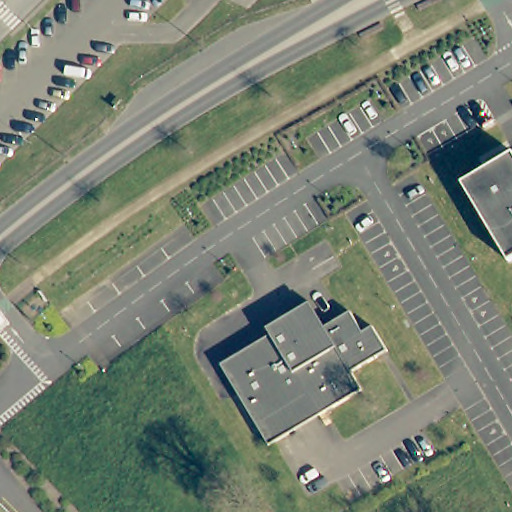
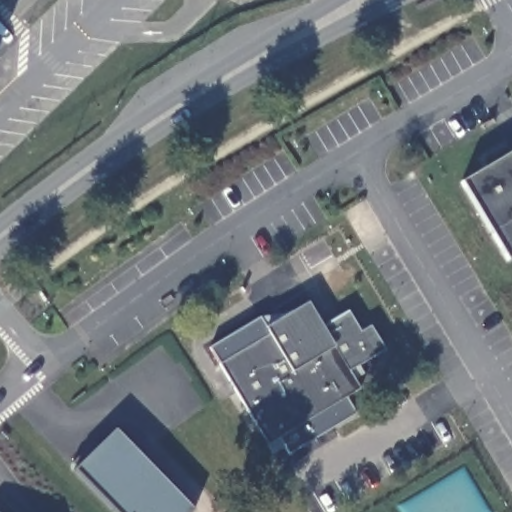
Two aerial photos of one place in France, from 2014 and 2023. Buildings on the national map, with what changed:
unchanged [(512,153),(512,260),(511,260),(464,181),(512,153)]
unchanged [(220,362),(272,332),(268,325),(311,300),(325,325),(351,310),(363,331),(373,325),(388,350),(352,371),(363,390),(269,444),(220,362)]
new [(191,512),(114,512),(74,471),(117,430),(191,512)]

